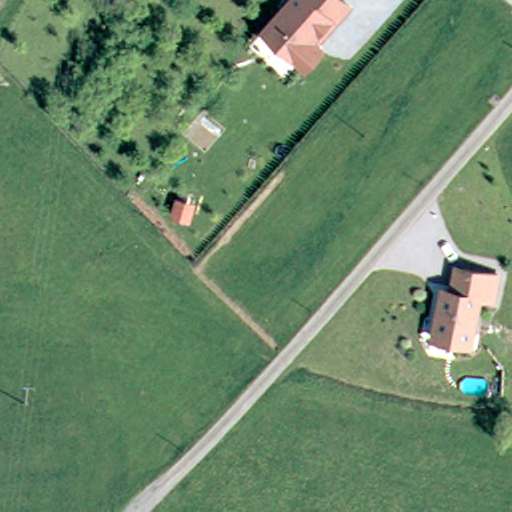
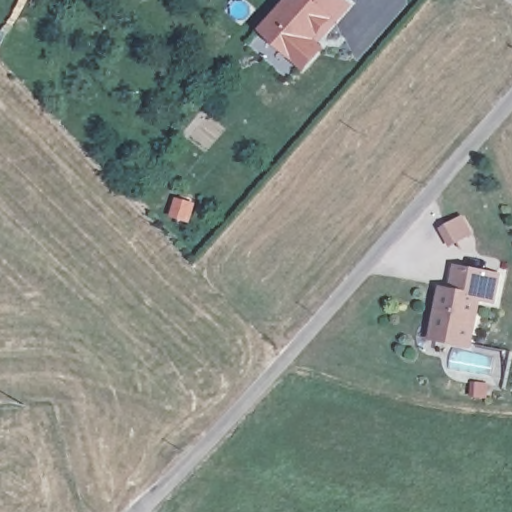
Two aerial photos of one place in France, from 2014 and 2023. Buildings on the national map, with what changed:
unchanged [(338,0),(344,5),(330,21),(326,19),(307,40),(314,46),(297,65),(258,30),(285,0),(338,0)]
unchanged [(487,298),(473,295),(464,341),(429,334),(440,287),(446,289),(452,264),(459,266),(492,273),(487,298)]

